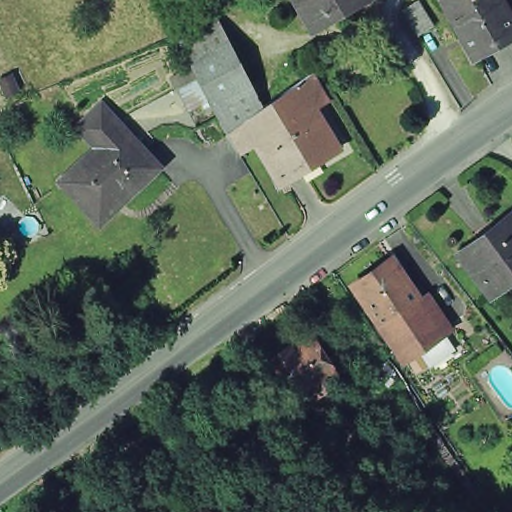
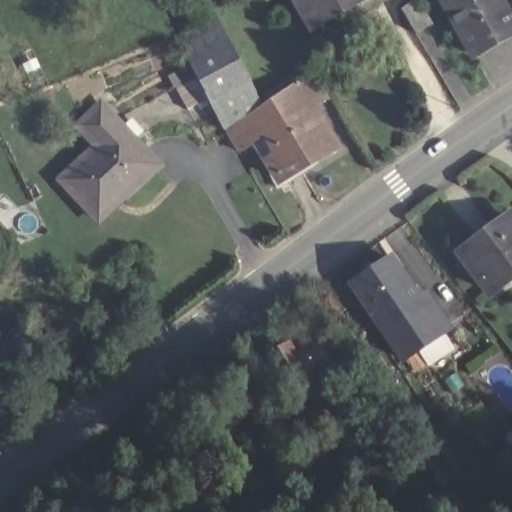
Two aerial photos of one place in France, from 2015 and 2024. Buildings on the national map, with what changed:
unchanged [(302,0),(359,0),(317,26),(302,0)]
unchanged [(450,0),(494,0),(512,29),(512,38),(475,61),(442,5),(450,0)]
unchanged [(406,10),(420,1),(435,25),(421,34),(406,10)]
unchanged [(186,60),(172,31),(217,9),(261,95),(316,64),(333,96),(318,104),(342,153),(272,187),(249,147),(233,153),(210,108),(186,119),(163,72),(186,60)]
unchanged [(90,214),(61,182),(97,148),(79,128),(100,108),(119,128),(156,168),(121,200),(97,222),(90,214)]
unchanged [(451,248),(497,212),(512,231),(512,264),(481,287),(451,248)]
unchanged [(401,355),(347,279),(384,253),(437,330),(440,335),(433,340),(430,335),(401,355)]
unchanged [(301,384),(279,349),(300,335),(304,341),(322,330),(334,349),(339,346),(346,356),(335,363),(344,377),(316,394),(307,381),(301,384)]
unchanged [(250,389),(265,414),(249,424),(233,400),(250,389)]

